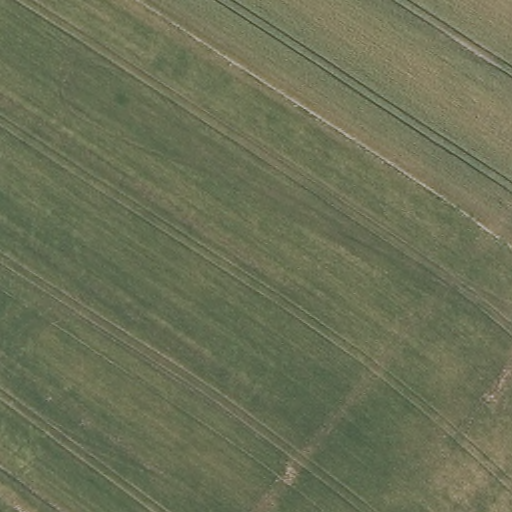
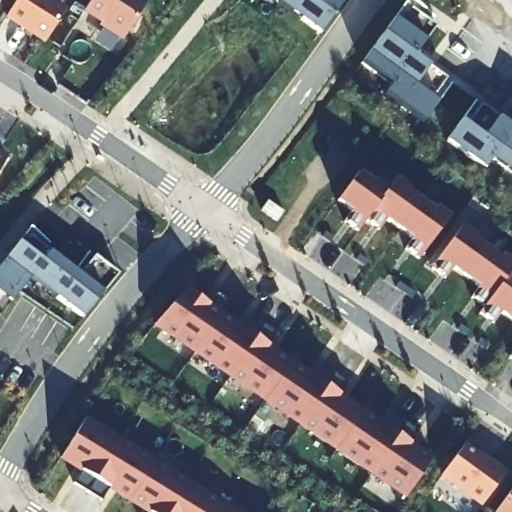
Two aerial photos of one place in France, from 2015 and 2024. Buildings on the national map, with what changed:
new [(50,0),(65,9),(45,41),(5,16),(16,0),(50,0)]
new [(88,4),(90,0),(143,0),(145,2),(121,38),(99,23),(100,21),(91,15),(83,10),(87,4),(88,4)]
new [(275,0),(350,0),(323,36),(275,0)]
new [(387,98),(395,89),(365,66),(412,1),(438,21),(435,26),(439,30),(417,59),(455,87),(425,126),(387,98)]
new [(487,170),(450,143),(479,104),(512,129),(512,173),(495,160),(487,170)]
new [(6,158),(0,168),(0,154),(6,158)]
new [(360,234),(347,224),(354,214),(340,204),(361,174),(375,185),(378,182),(391,192),(399,181),(413,191),(410,194),(436,213),(438,210),(452,220),(421,263),(407,252),(415,243),(389,224),(382,234),(368,223),(360,234)]
new [(270,204),(286,215),(280,224),(264,213),(270,204)]
new [(481,291),(455,272),(448,282),(434,272),(465,229),(479,239),(476,242),(502,262),(505,259),(512,263),(512,323),(504,317),(496,327),(482,317),(487,310),(474,300),(481,291)]
new [(0,292),(0,273),(11,258),(33,230),(53,247),(50,250),(54,253),(78,273),(93,254),(122,277),(86,322),(33,282),(15,304),(0,292)]
new [(211,308),(220,295),(233,304),(225,317),(245,332),(254,319),(280,337),(271,349),(316,380),(325,368),(351,386),(342,399),(387,429),(396,417),(422,434),(413,447),(435,462),(408,501),(158,327),(188,292),(211,308)]
new [(89,421),(235,512),(146,512),(112,491),(104,504),(76,487),(84,474),(63,461),(89,421)]
new [(470,443),(485,454),(482,457),(508,476),(485,508),(445,479),(470,443)]
new [(512,512),(501,512),(512,497),(512,512)]

